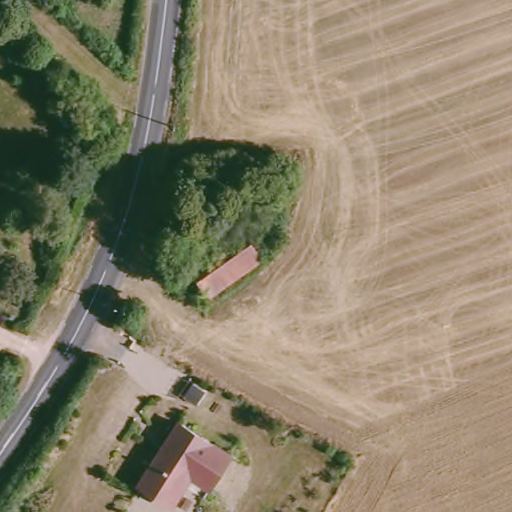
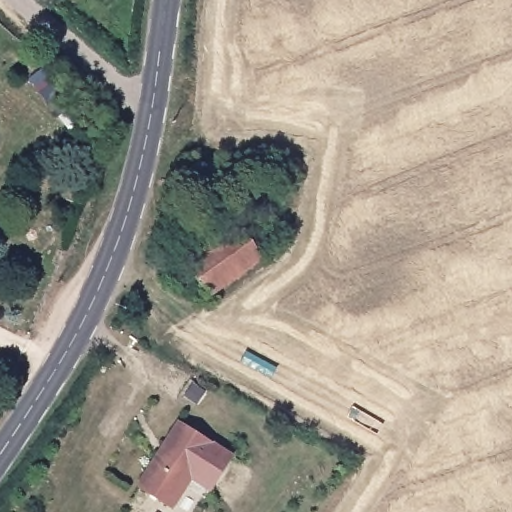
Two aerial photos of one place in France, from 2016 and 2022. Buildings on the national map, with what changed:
unchanged [(271,258),(216,297),(193,264),(247,227),(250,231),(271,258)]
unchanged [(207,490),(187,476),(167,507),(135,485),(178,423),(229,459),(207,490)]

